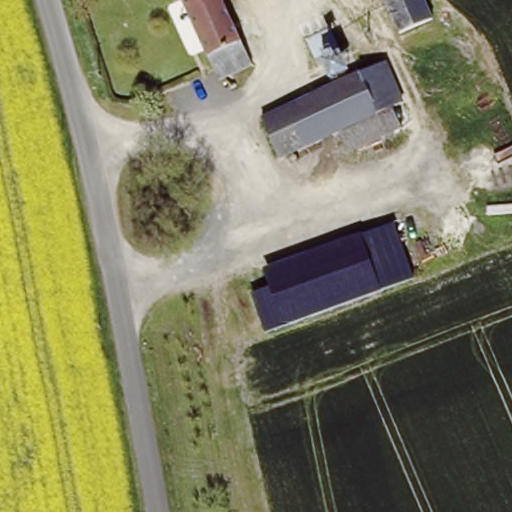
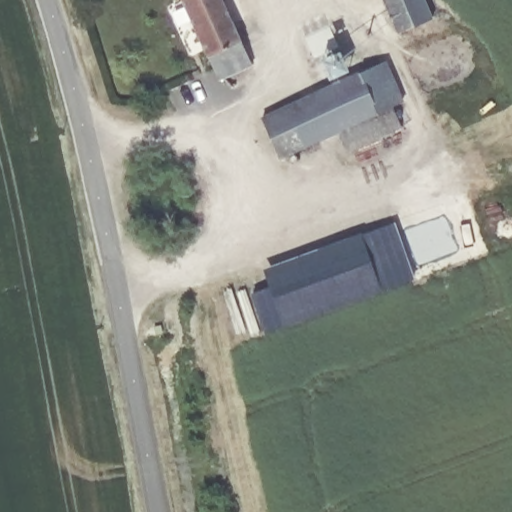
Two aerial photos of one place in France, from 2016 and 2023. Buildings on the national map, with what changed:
unchanged [(228,72),(231,77),(220,81),(218,77),(215,78),(179,0),(218,0),(246,64),(228,72)]
unchanged [(400,33),(385,0),(424,0),(432,19),(400,33)]
unchanged [(321,60),(343,50),(351,71),(331,79),(321,60)]
unchanged [(335,133),(276,159),(259,119),(253,108),(270,100),(275,112),(381,64),(399,104),(335,133)]
unchanged [(407,123),(343,150),(335,133),(399,104),(407,123)]
unchanged [(409,283),(376,294),(362,258),(357,241),(390,229),(409,283)]
unchanged [(376,294),(262,335),(249,299),(270,292),(362,258),(376,294)]

